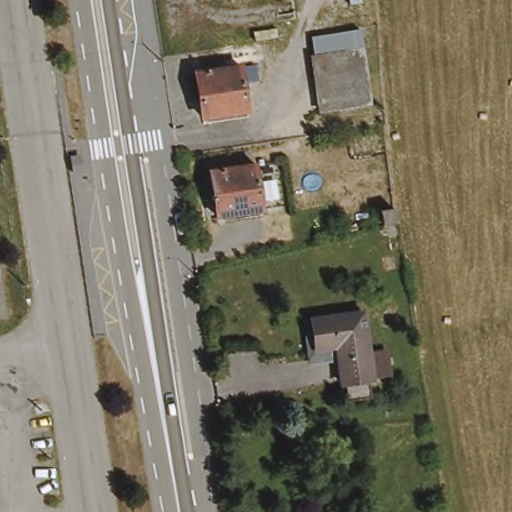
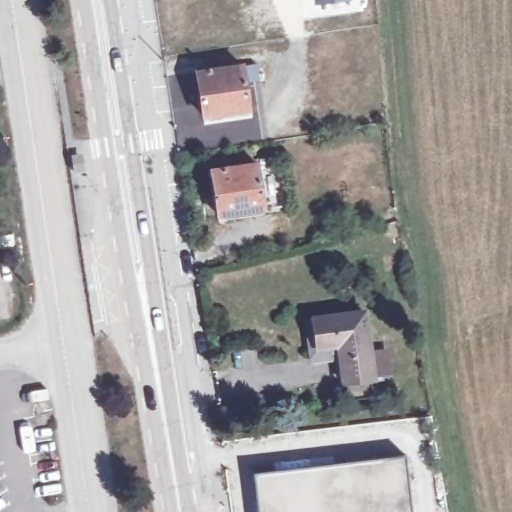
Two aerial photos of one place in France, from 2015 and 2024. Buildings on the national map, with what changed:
new [(313,4),(312,0),(344,0),(313,4)]
unchanged [(312,38),(362,30),(371,102),(321,110),(312,38)]
unchanged [(260,62),(263,77),(244,80),(247,112),(203,119),(195,72),(260,62)]
unchanged [(254,161),(260,205),(214,215),(206,170),(254,161)]
unchanged [(395,220),(382,224),(380,209),(394,206),(395,220)]
unchanged [(362,311),(368,349),(385,347),(390,372),(345,382),(337,346),(314,350),(310,319),(362,311)]
new [(403,456),(410,512),(259,512),(255,473),(403,456)]

